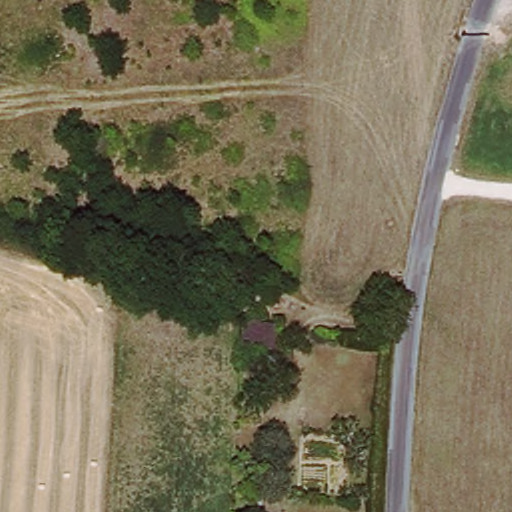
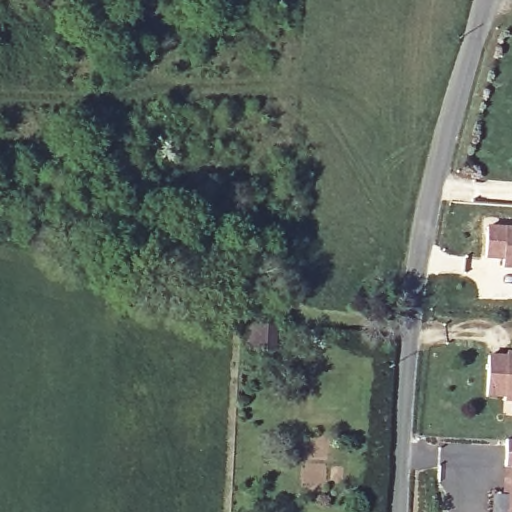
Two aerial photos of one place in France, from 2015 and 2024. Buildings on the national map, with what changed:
new [(502,261),(485,261),(486,225),(512,227),(512,270),(501,270),(502,261)]
unchanged [(285,335),(284,357),(252,356),(253,334),(285,335)]
new [(504,397),(485,397),(487,354),(505,355),(505,351),(512,351),(512,404),(504,403),(504,397)]
new [(501,494),(505,440),(512,440),(512,512),(505,512),(506,494),(501,494)]

